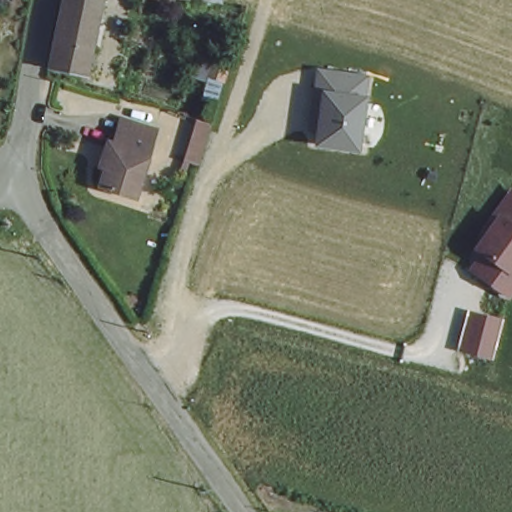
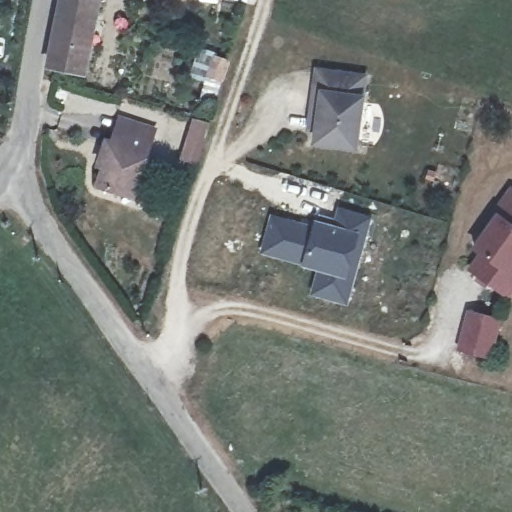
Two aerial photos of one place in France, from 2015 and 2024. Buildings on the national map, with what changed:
unchanged [(56,0),(93,0),(85,78),(47,75),(56,0)]
unchanged [(176,3),(156,0),(176,0),(176,3)]
unchanged [(218,5),(176,3),(176,0),(218,0),(218,5)]
unchanged [(210,86),(202,82),(195,79),(203,61),(204,62),(217,68),(210,86)]
unchanged [(368,74),(364,95),(356,150),(313,144),(319,89),(311,88),(314,67),(368,74)]
unchanged [(102,193),(114,141),(117,124),(134,129),(131,142),(150,147),(149,152),(138,202),(102,193)]
unchanged [(480,255),(471,247),(512,189),(512,300),(469,270),(480,255)]
new [(269,211),(311,223),(313,217),(331,222),(337,204),(373,215),(347,306),(308,295),(315,270),(258,252),(269,211)]
unchanged [(492,358),(460,351),(470,310),(502,318),(492,358)]

